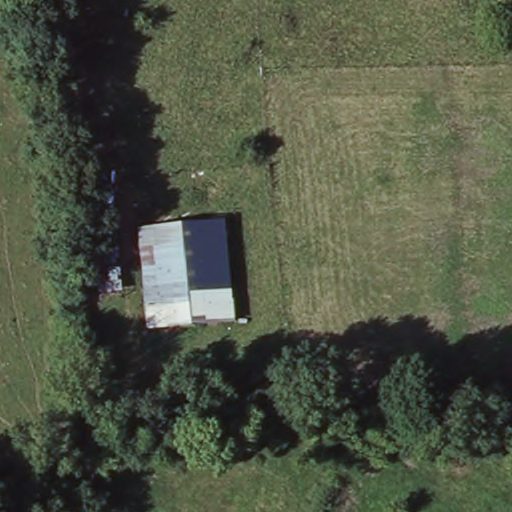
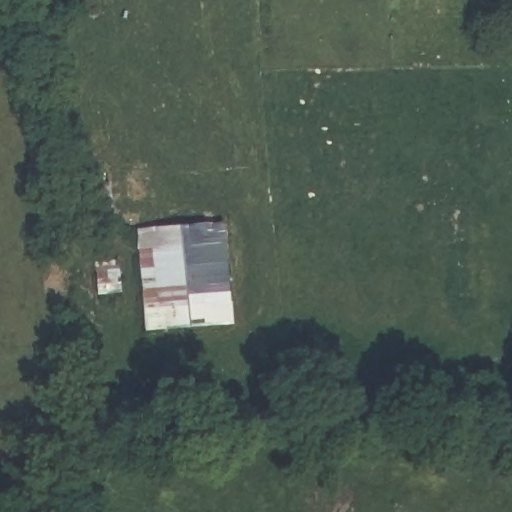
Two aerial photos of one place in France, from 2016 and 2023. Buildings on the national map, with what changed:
unchanged [(228,222),(237,325),(147,334),(137,229),(228,222)]

